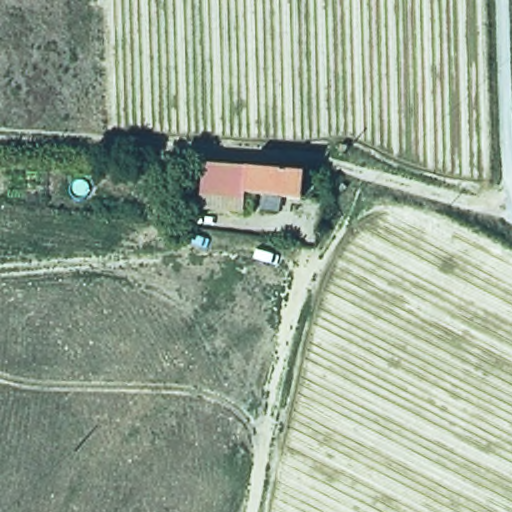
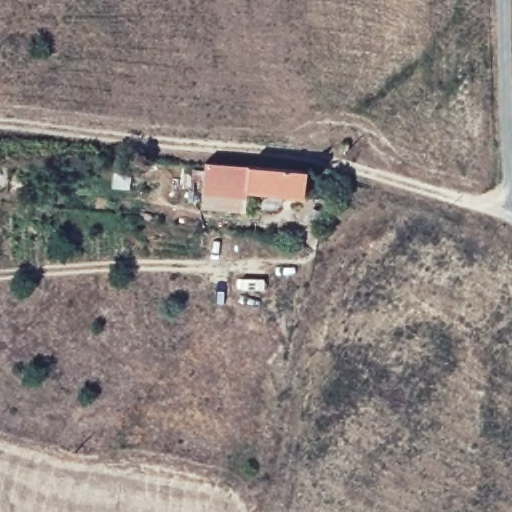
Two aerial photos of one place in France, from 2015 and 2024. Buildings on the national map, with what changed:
unchanged [(305,171),(302,199),(247,194),(245,213),(201,209),(203,162),(305,171)]

